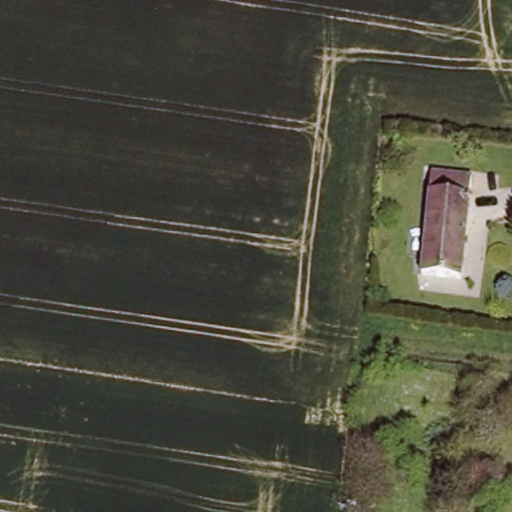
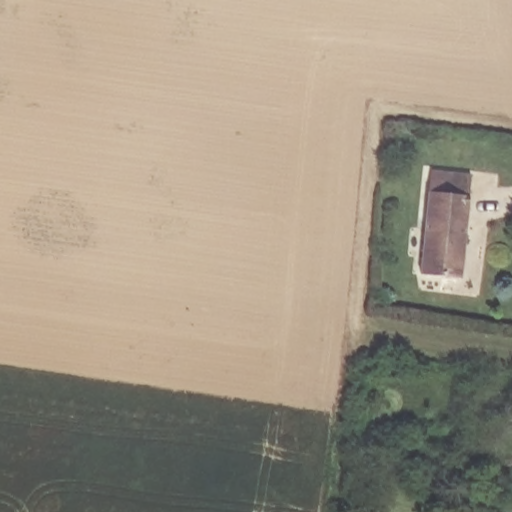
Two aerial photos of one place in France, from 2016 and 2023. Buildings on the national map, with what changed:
unchanged [(419,275),(430,189),(475,194),(464,280),(419,275)]

